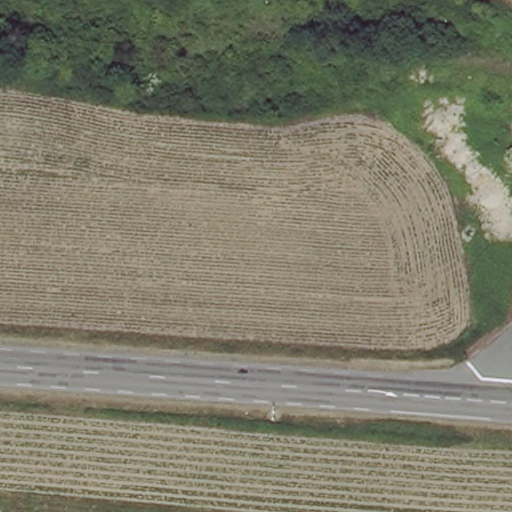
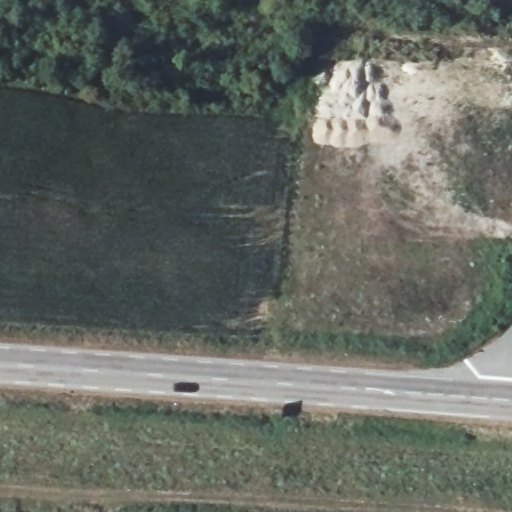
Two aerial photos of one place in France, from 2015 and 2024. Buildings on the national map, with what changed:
[]

